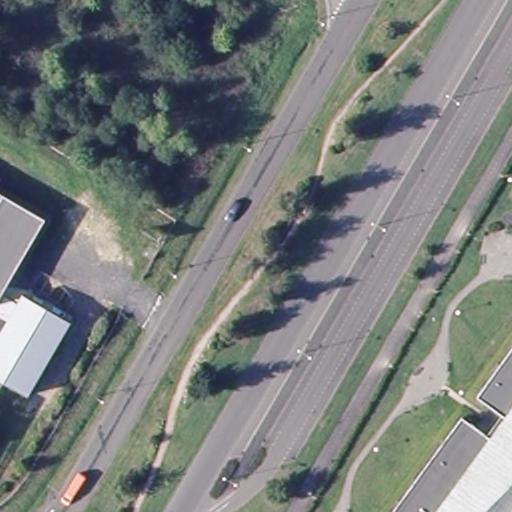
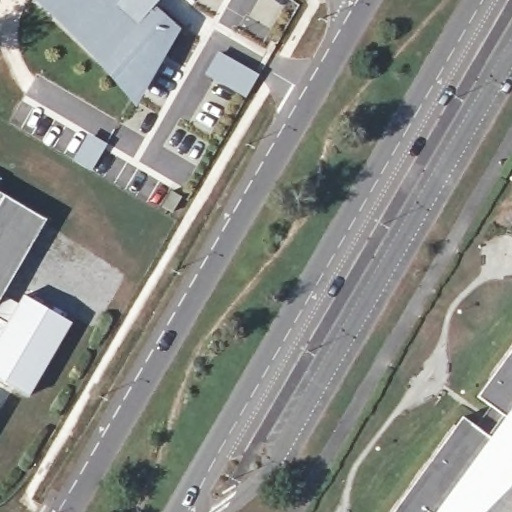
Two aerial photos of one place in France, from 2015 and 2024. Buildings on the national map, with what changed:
new [(95,45),(46,0),(152,0),(150,6),(177,31),(164,55),(139,98),(94,47),(95,46),(95,45)]
new [(194,2),(190,0),(195,0),(194,2)]
new [(218,56),(239,68),(240,65),(260,76),(247,99),(207,76),(218,56)]
new [(89,139),(104,148),(91,171),(75,162),(89,139)]
new [(172,192),(182,197),(172,214),(163,208),(172,192)]
unchanged [(0,289),(0,195),(41,219),(0,289)]
unchanged [(23,295),(71,324),(29,396),(0,379),(0,334),(8,321),(0,316),(0,306),(5,297),(19,303),(23,295)]
unchanged [(469,430),(484,410),(473,402),(512,348),(512,512),(391,512),(457,421),(469,430)]

